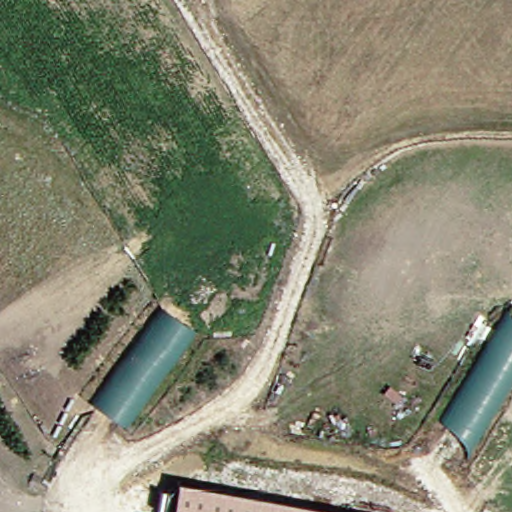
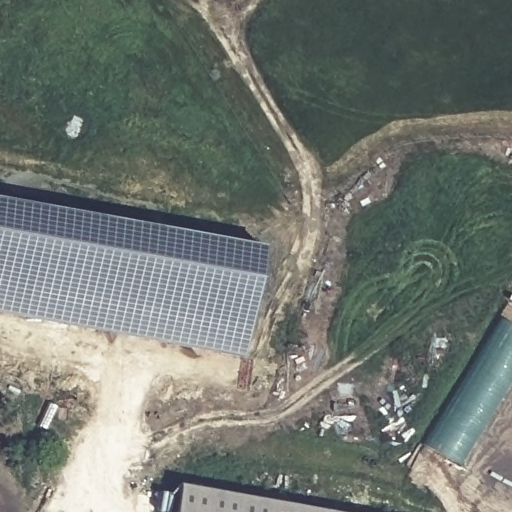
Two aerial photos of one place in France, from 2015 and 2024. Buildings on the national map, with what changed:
new [(0,198),(270,246),(253,350),(0,304),(0,198)]
demolished [(75,408),(148,307),(186,334),(115,433),(75,408)]
unchanged [(410,450),(490,308),(512,319),(512,352),(444,467),(410,450)]
unchanged [(331,512),(173,512),(178,483),(331,512)]

